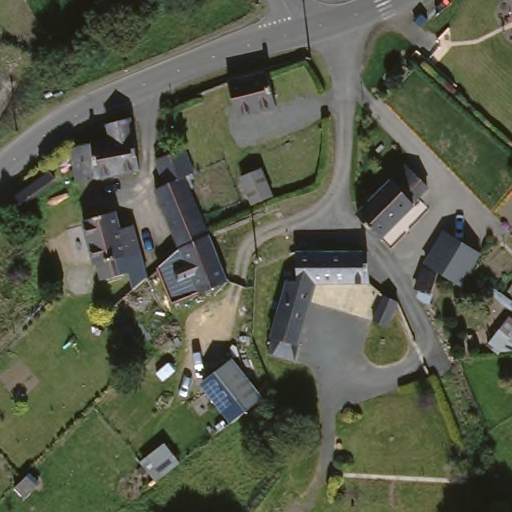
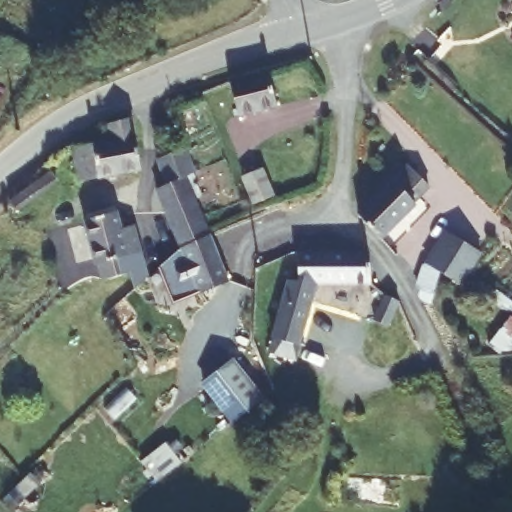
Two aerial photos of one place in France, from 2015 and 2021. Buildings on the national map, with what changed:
unchanged [(269,70),(270,72),(278,105),(241,115),(232,81),(269,70)]
unchanged [(117,131),(116,119),(138,112),(147,164),(100,175),(85,177),(78,142),(89,139),(117,131)]
unchanged [(172,214),(160,185),(171,181),(162,158),(194,144),(203,169),(191,173),(203,202),(172,214)]
unchanged [(411,165),(434,189),(386,236),(363,215),(411,165)]
unchanged [(267,166),(276,193),(254,201),(244,174),(267,166)]
unchanged [(203,202),(214,231),(183,242),(172,214),(203,202)]
unchanged [(126,213),(131,228),(144,225),(151,250),(138,252),(141,265),(112,272),(110,262),(102,263),(93,220),(126,213)]
unchanged [(428,261),(449,229),(483,251),(462,283),(441,270),(435,299),(425,298),(427,287),(423,285),(427,266),(441,269),(428,261)]
unchanged [(214,231),(233,276),(202,289),(183,242),(214,231)]
unchanged [(368,249),(368,278),(312,280),(299,343),(275,336),(287,275),(299,276),(297,249),(368,249)]
unchanged [(400,304),(388,328),(371,319),(382,295),(400,304)]
unchanged [(258,400),(227,421),(201,382),(232,361),(258,400)]

